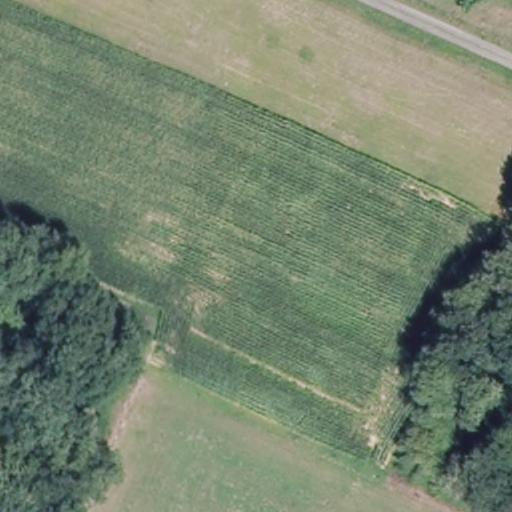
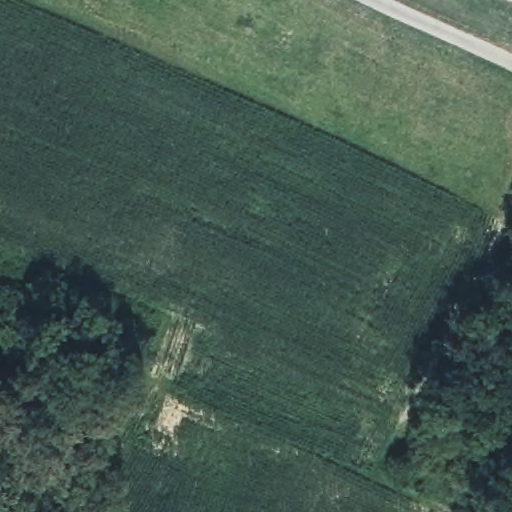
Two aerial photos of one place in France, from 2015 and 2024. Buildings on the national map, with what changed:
[]

